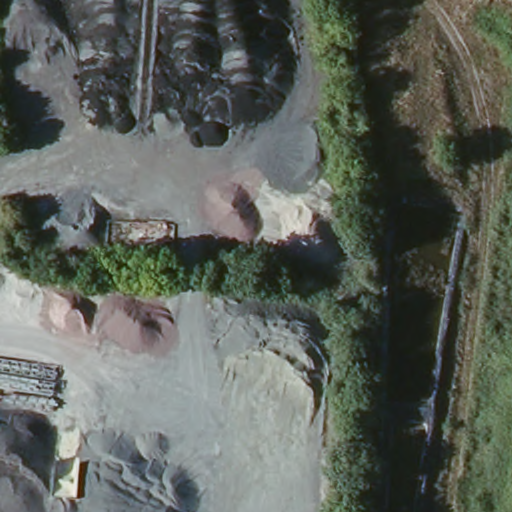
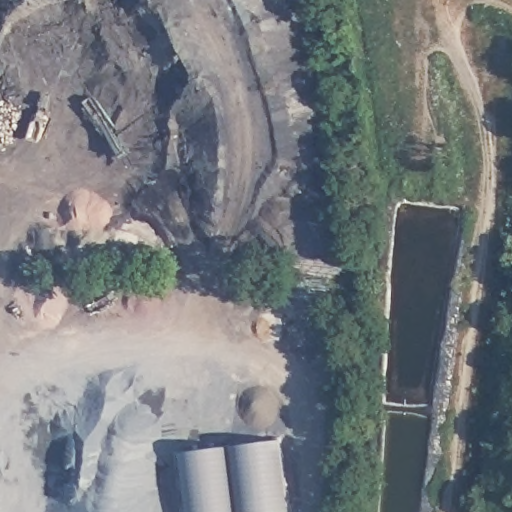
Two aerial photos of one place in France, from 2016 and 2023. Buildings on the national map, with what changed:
demolished [(236,239),(235,256),(215,258),(215,240),(236,239)]
new [(284,445),(291,512),(187,512),(182,460),(284,445)]

